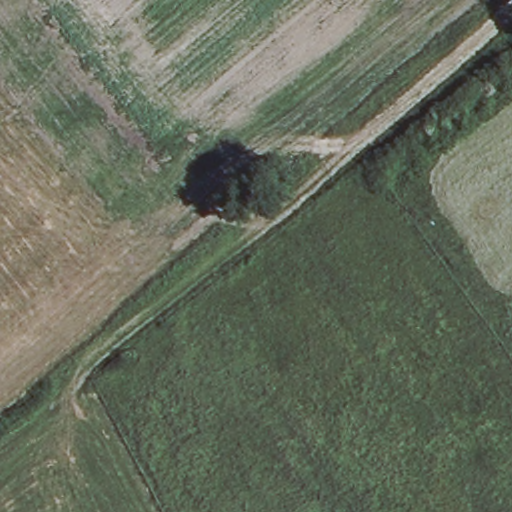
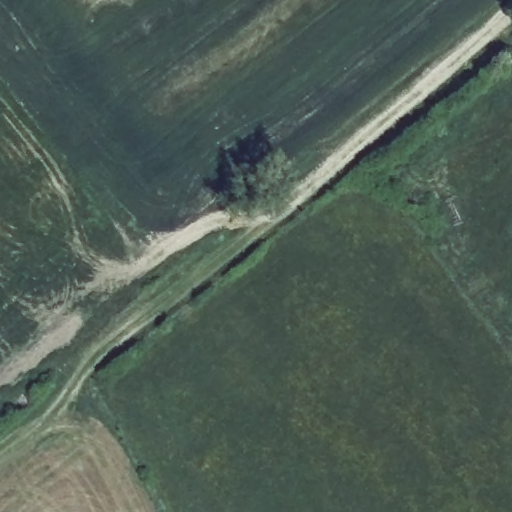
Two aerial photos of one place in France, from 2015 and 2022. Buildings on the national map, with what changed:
[]

